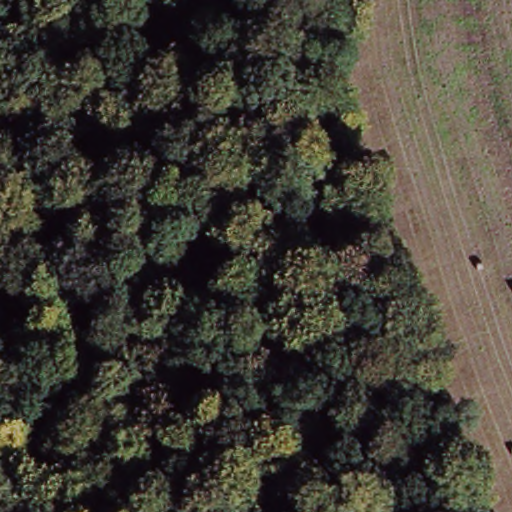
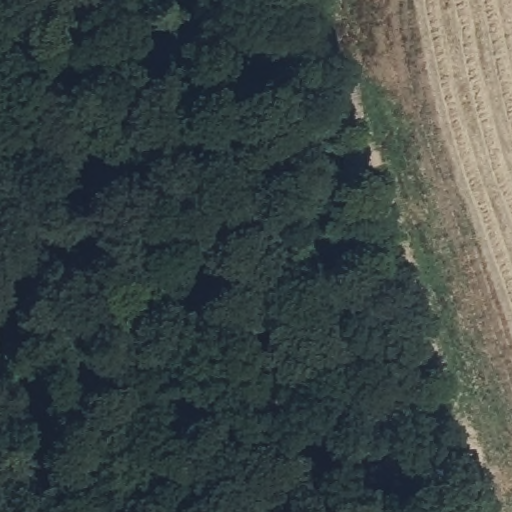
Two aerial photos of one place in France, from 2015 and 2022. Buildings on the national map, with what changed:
[]

